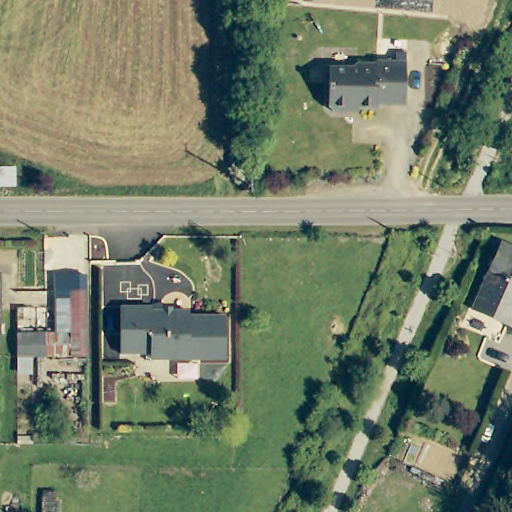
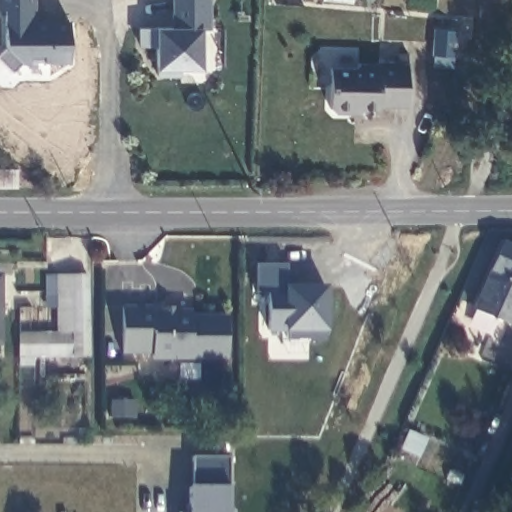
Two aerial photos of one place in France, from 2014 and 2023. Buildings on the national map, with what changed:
new [(20,64),(11,72),(0,60),(0,53),(7,47),(5,25),(4,10),(0,9),(0,0),(33,0),(34,21),(67,20),(70,63),(20,64)]
new [(200,30),(201,68),(180,69),(179,76),(156,77),(155,67),(155,45),(136,45),(137,29),(157,27),(172,26),(171,0),(209,0),(208,30),(200,30)]
unchanged [(407,60),(407,105),(332,111),(332,69),(407,60)]
unchanged [(18,178),(18,188),(0,188),(0,166),(17,165),(18,178)]
unchanged [(512,243),(512,325),(477,310),(508,241),(512,243)]
new [(325,340),(286,339),(285,331),(266,331),(267,293),(251,293),(251,264),(281,265),(281,292),(294,292),(295,287),(325,287),(325,340)]
unchanged [(5,343),(0,343),(0,272),(4,272),(5,343)]
new [(56,275),(92,275),(92,295),(74,295),(74,336),(55,336),(56,275)]
unchanged [(74,336),(74,295),(92,295),(92,356),(74,356),(74,336)]
unchanged [(156,307),(155,313),(229,314),(227,358),(152,360),(151,353),(122,354),(125,307),(156,307)]
unchanged [(74,356),(38,356),(38,382),(19,382),(19,356),(19,336),(74,336),(74,356)]
new [(410,432),(426,438),(420,455),(403,448),(410,432)]
new [(230,487),(230,512),(189,512),(189,486),(194,485),(191,457),(227,457),(230,487)]

